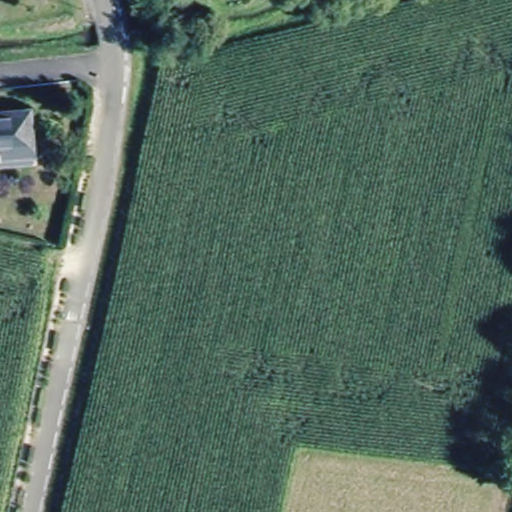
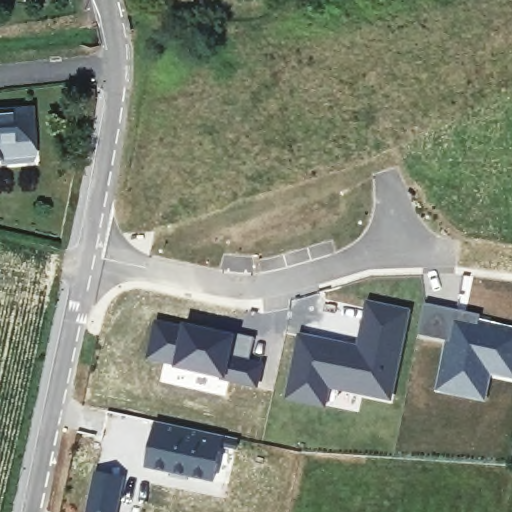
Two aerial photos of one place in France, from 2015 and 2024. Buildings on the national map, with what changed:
unchanged [(30,112),(31,147),(31,158),(0,160),(0,113),(30,112)]
new [(298,331),(356,343),(367,298),(411,307),(391,401),(331,387),(325,407),(284,399),(298,331)]
new [(481,313),(481,316),(512,324),(512,380),(491,376),(485,401),(434,390),(445,339),(417,333),(423,301),(481,313)]
new [(155,317),(181,322),(174,366),(145,358),(155,317)]
new [(256,386),(228,379),(174,366),(181,322),(182,319),(255,336),(249,360),(262,364),(256,386)]
new [(155,419),(229,437),(215,481),(144,466),(155,419)]
new [(126,475),(117,512),(85,512),(95,468),(126,475)]

